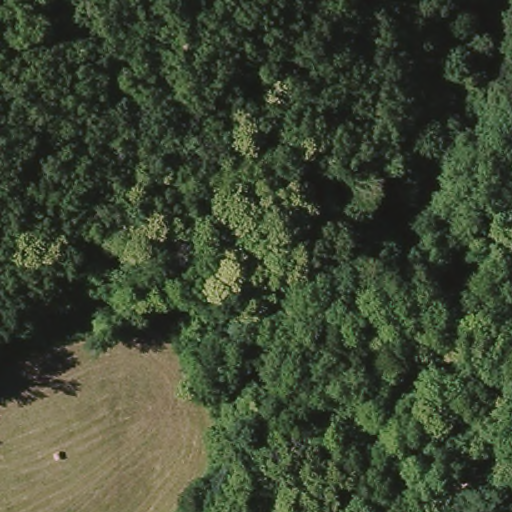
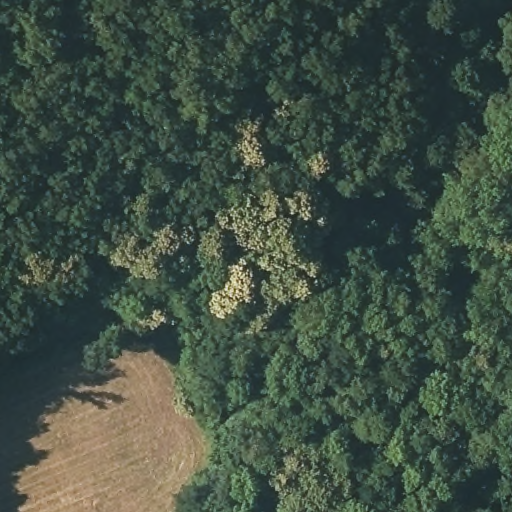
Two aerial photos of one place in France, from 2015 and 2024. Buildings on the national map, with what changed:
unchanged [(387,245),(376,230),(399,217),(407,231),(387,245)]

